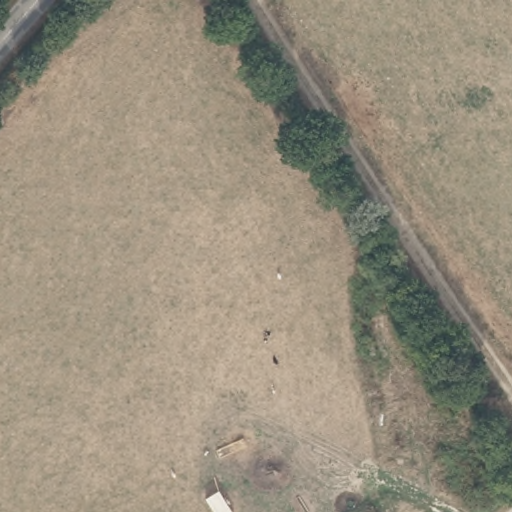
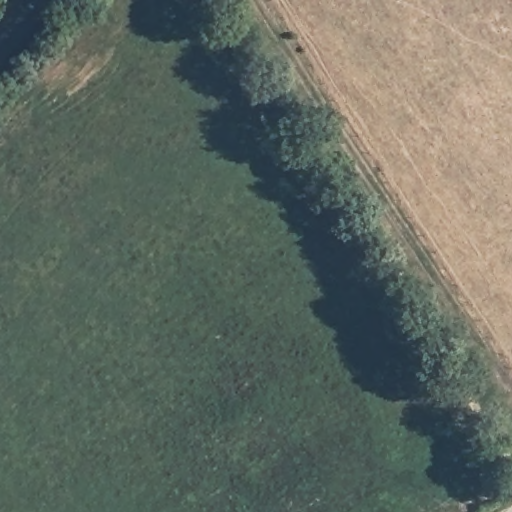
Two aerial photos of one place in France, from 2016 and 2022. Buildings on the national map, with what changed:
[]

